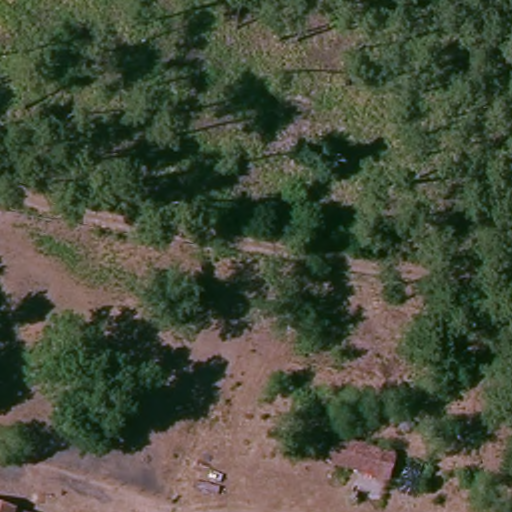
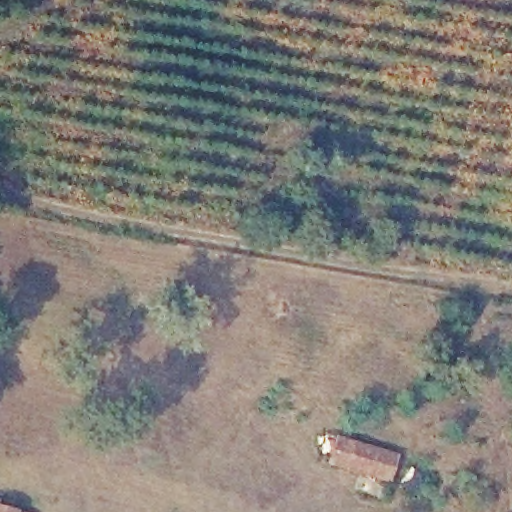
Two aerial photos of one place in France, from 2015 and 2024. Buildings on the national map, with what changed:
unchanged [(334,434),(394,452),(386,482),(324,462),(334,434)]
unchanged [(11,512),(0,512),(0,492),(15,495),(11,512)]

